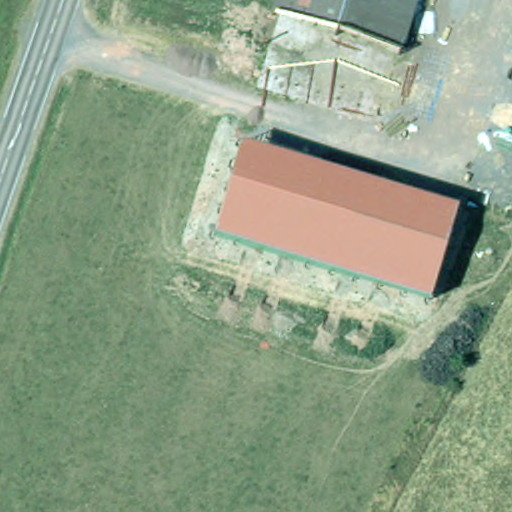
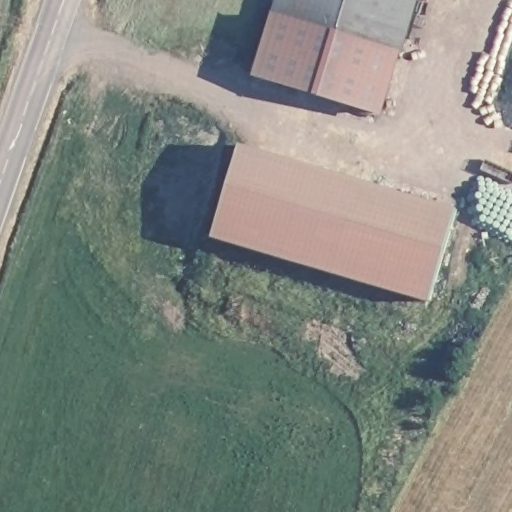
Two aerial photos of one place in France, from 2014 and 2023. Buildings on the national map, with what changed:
unchanged [(270,10),(274,0),(415,0),(400,49),(270,10)]
new [(382,115),(252,76),(270,10),(400,49),(382,115)]
unchanged [(240,145),(457,209),(428,305),(212,240),(240,145)]

